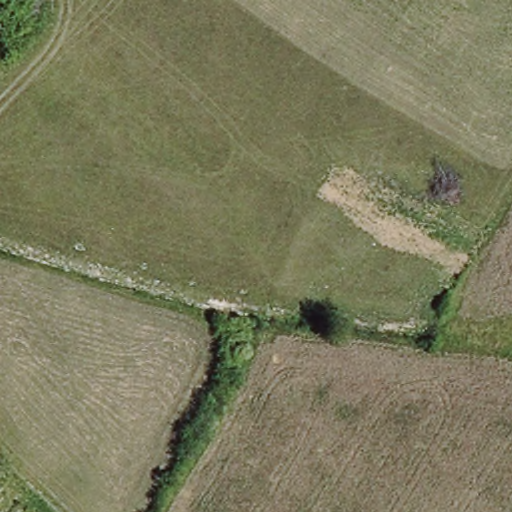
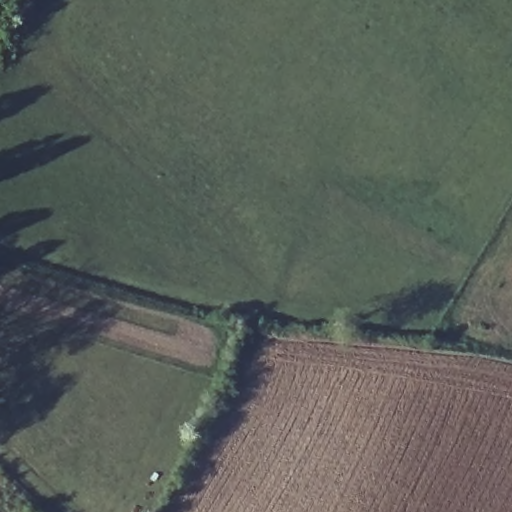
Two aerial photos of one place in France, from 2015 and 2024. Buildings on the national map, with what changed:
[]

